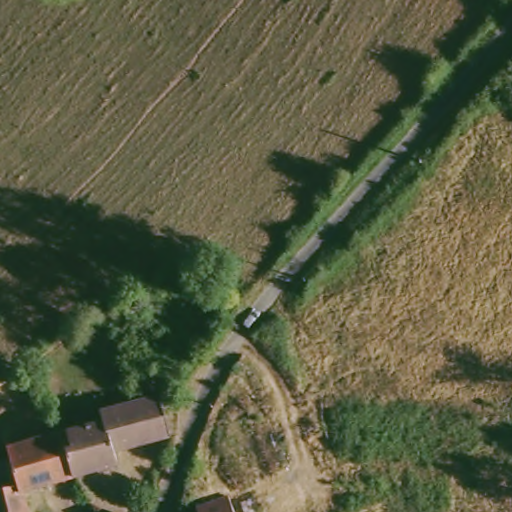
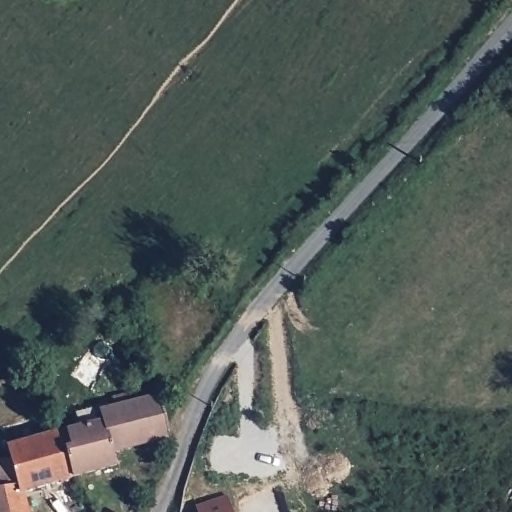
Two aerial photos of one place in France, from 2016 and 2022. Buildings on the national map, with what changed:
unchanged [(176,434),(118,449),(122,462),(77,473),(68,451),(76,449),(70,430),(69,431),(67,428),(84,424),(81,413),(92,409),(96,420),(107,417),(103,408),(120,404),(116,392),(132,387),(135,399),(164,391),(170,415),(176,434)]
unchanged [(70,430),(76,449),(68,451),(77,473),(27,486),(32,512),(0,512),(0,459),(10,456),(8,446),(67,428),(69,431),(70,430)]
unchanged [(198,503),(213,496),(225,491),(234,512),(202,512),(201,510),(198,503)]
unchanged [(202,512),(197,512),(201,510),(202,512)]

